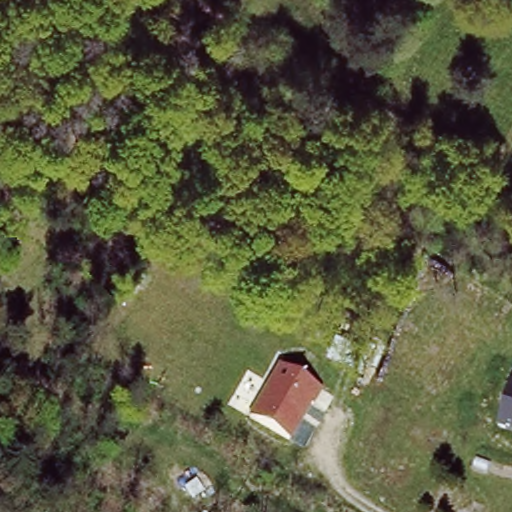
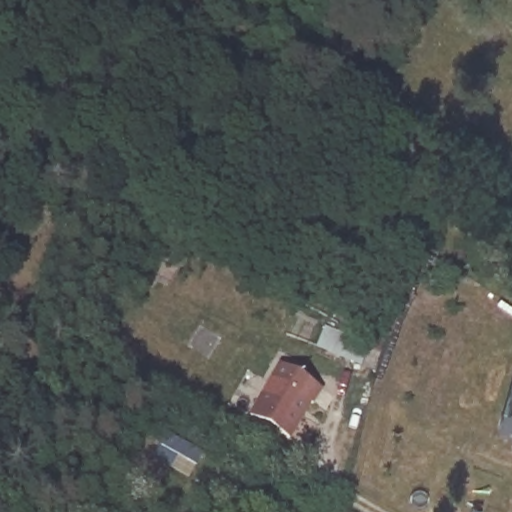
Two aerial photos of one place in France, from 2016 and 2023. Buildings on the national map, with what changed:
unchanged [(322,385),(295,439),(252,420),(279,365),(322,385)]
unchanged [(512,385),(512,430),(499,426),(512,385)]

